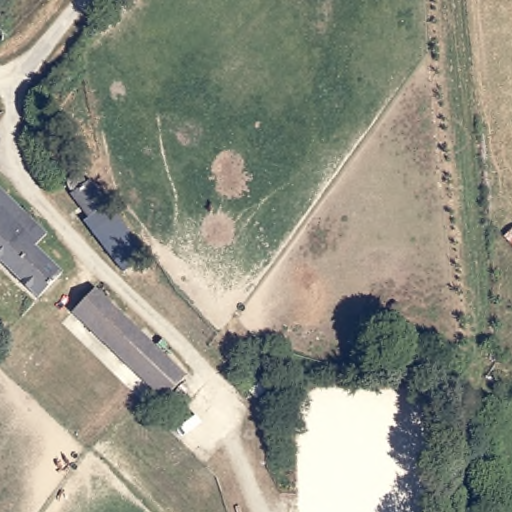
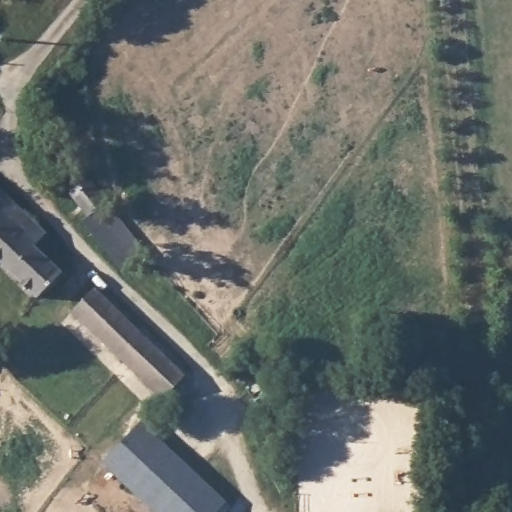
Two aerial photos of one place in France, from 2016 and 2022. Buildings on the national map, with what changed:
unchanged [(44,253),(63,272),(41,293),(0,254),(0,182),(45,224),(44,253)]
unchanged [(75,215),(78,212),(97,193),(165,270),(153,281),(150,285),(142,291),(97,247),(101,242),(75,215)]
unchanged [(100,294),(196,381),(170,407),(77,314),(100,294)]
new [(225,501),(216,512),(154,512),(102,463),(141,420),(225,501)]

